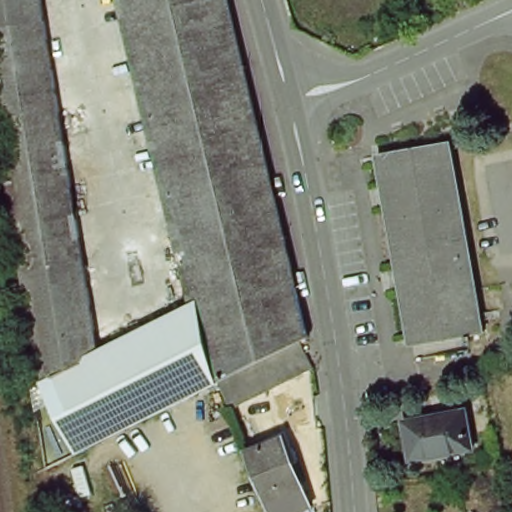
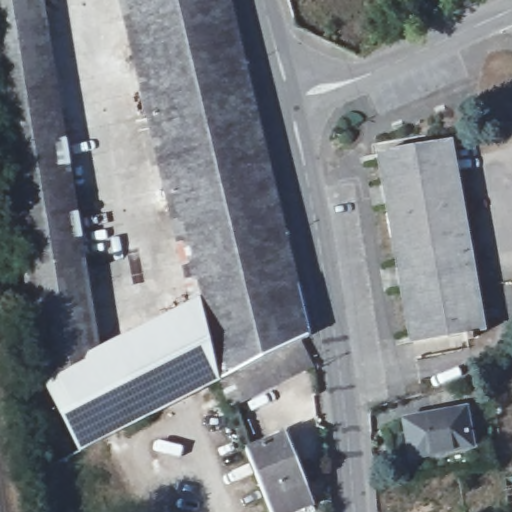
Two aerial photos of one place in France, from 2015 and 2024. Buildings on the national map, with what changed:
unchanged [(44,0),(47,16),(0,24),(0,0),(44,0)]
unchanged [(127,0),(230,0),(246,66),(148,89),(127,0)]
unchanged [(27,275),(0,112),(0,24),(47,16),(87,265),(27,275)]
unchanged [(160,140),(148,89),(246,66),(258,117),(160,140)]
unchanged [(171,186),(160,140),(258,117),(268,163),(171,186)]
unchanged [(388,206),(385,186),(379,155),(452,141),(486,332),(413,344),(388,206)]
unchanged [(275,190),(178,213),(171,186),(268,163),(275,190)]
unchanged [(281,289),(240,299),(200,308),(199,303),(178,213),(275,190),(297,285),(281,289)]
unchanged [(76,365),(46,380),(44,381),(27,275),(87,265),(101,352),(76,365)]
unchanged [(309,336),(302,340),(219,381),(218,382),(200,308),(240,299),(281,289),(297,285),(309,336)]
unchanged [(200,308),(218,382),(81,450),(46,380),(76,365),(101,352),(199,303),(200,308)]
unchanged [(230,408),(219,381),(302,340),(315,366),(230,408)]
unchanged [(417,458),(411,421),(471,410),(478,447),(417,458)]
unchanged [(291,512),(279,512),(253,447),(290,432),(318,501),(291,512)]

